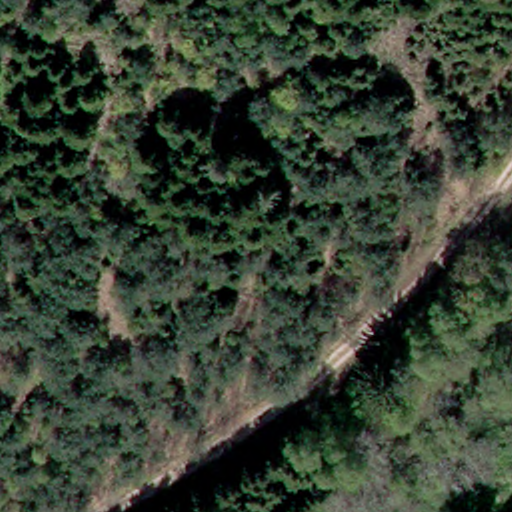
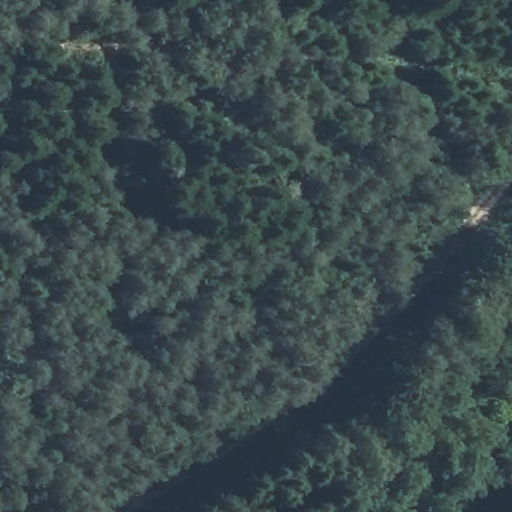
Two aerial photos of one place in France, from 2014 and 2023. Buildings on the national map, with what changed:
unchanged [(449,429),(456,440),(450,443),(443,433),(449,429)]

